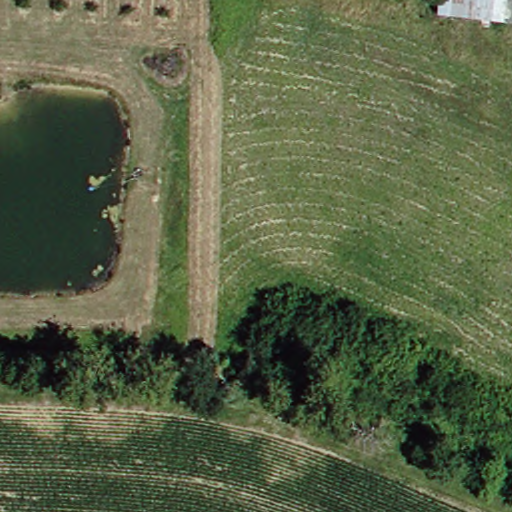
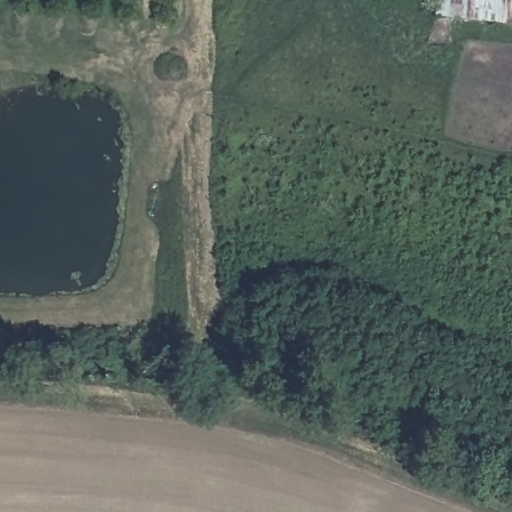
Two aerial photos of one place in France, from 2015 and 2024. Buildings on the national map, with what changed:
unchanged [(445,0),(512,0),(512,25),(444,21),(445,0)]

